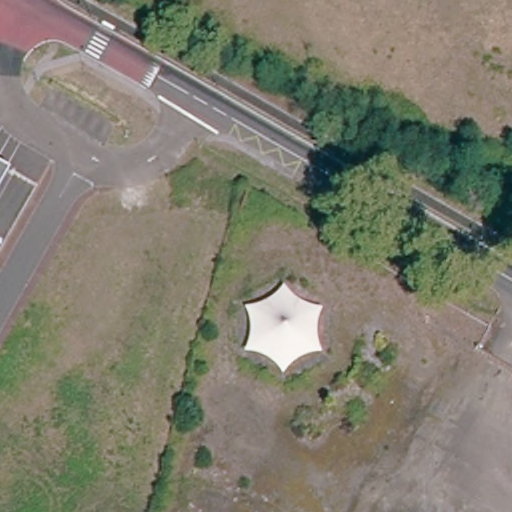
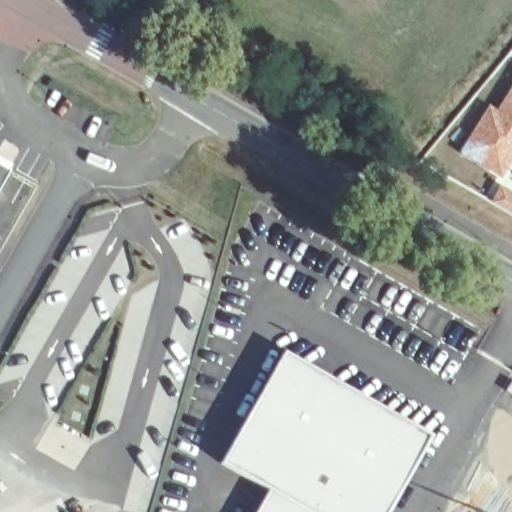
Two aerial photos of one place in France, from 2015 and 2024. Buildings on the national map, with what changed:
new [(496,108),(512,84),(512,163),(501,179),(459,152),(490,103),(496,108)]
unchanged [(7,171),(0,186),(0,167),(7,171)]
new [(512,191),(512,215),(490,201),(500,184),(512,191)]
demolished [(263,362),(241,356),(249,330),(244,311),(265,306),(283,291),(299,305),(323,315),(317,323),(315,339),(319,357),(295,362),(285,379),(263,362)]
new [(257,512),(270,489),(221,462),(285,352),(431,436),(388,512),(257,512)]

